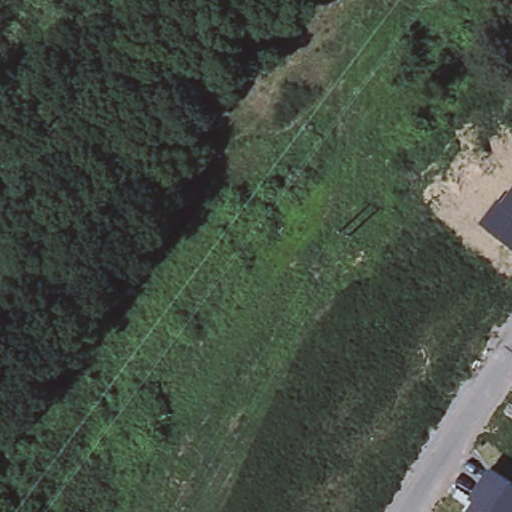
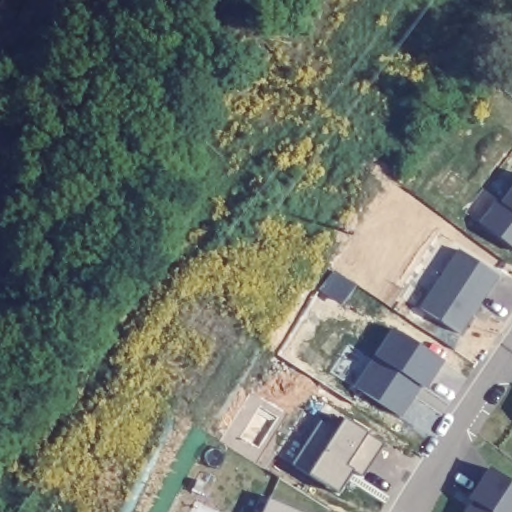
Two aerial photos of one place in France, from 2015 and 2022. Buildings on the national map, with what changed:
unchanged [(497,198),(502,201),(512,187),(512,248),(478,222),(497,198)]
new [(420,306),(460,247),(500,274),(460,332),(420,306)]
new [(355,386),(395,327),(444,360),(425,389),(421,387),(401,417),(355,386)]
new [(310,472),(293,462),(320,420),(336,431),(345,419),(368,433),(383,442),(362,474),(353,469),(339,491),(310,472)]
unchanged [(469,499),(490,469),(512,483),(512,512),(466,512),(473,502),(469,499)]
new [(299,512),(262,512),(268,498),(299,512)]

